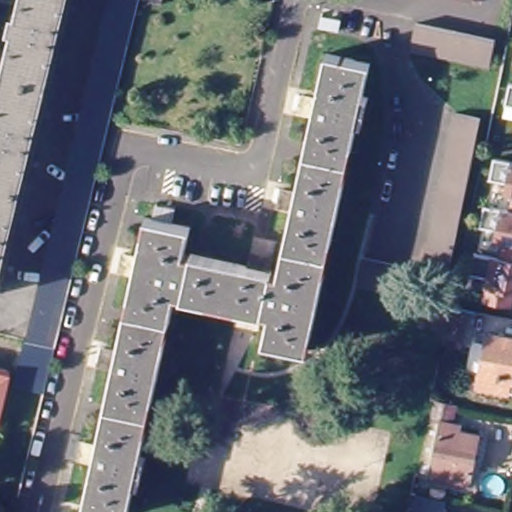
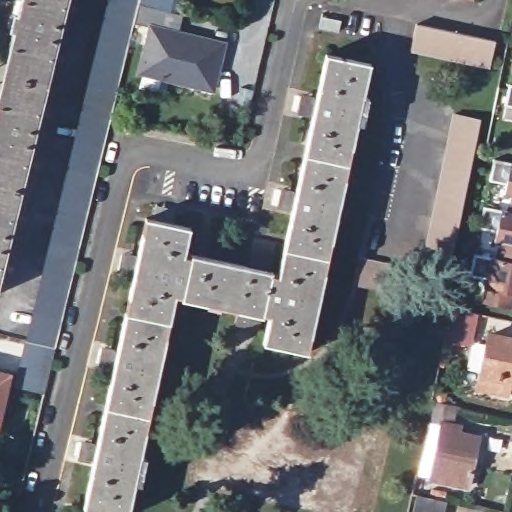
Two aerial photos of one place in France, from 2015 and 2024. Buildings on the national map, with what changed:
unchanged [(1,297),(0,296),(0,118),(21,30),(14,28),(17,15),(24,17),(28,0),(71,0),(1,297)]
unchanged [(112,0),(144,0),(117,113),(60,347),(31,340),(29,340),(112,0)]
unchanged [(478,10),(431,0),(481,0),(478,10)]
new [(149,26),(163,29),(167,11),(186,15),(182,33),(226,43),(216,92),(137,75),(149,26)]
unchanged [(496,40),(490,67),(410,51),(416,23),(496,40)]
unchanged [(510,45),(512,45),(512,67),(506,66),(510,45)]
unchanged [(311,351),(266,341),(271,318),(262,317),(262,320),(183,302),(184,299),(176,297),(129,512),(100,512),(82,508),(92,465),(85,463),(89,449),(95,451),(113,371),(106,368),(110,353),(116,355),(134,274),(126,272),(129,257),(136,260),(146,221),(191,231),(185,258),(192,260),(194,257),(272,274),(271,278),(278,279),(295,211),(286,209),(290,194),(297,196),(315,116),(307,114),(311,100),(317,101),(329,52),(375,62),(311,351)]
unchanged [(505,67),(506,66),(512,67),(512,68),(505,67)]
unchanged [(495,114),(500,92),(512,95),(512,117),(495,114)]
unchanged [(456,109),(482,115),(451,272),(422,266),(456,109)]
unchanged [(507,141),(510,127),(512,117),(512,142),(507,141)]
unchanged [(504,192),(506,182),(490,179),(494,157),(512,161),(512,194),(504,192)]
unchanged [(474,252),(498,258),(502,242),(494,240),(497,230),(480,227),(484,205),(508,211),(512,194),(512,265),(488,260),(473,257),(474,252)]
unchanged [(417,265),(410,292),(360,281),(365,253),(417,265)]
unchanged [(482,301),(485,287),(487,277),(470,274),(473,257),(488,260),(512,265),(512,305),(512,307),(482,301)]
unchanged [(475,340),(452,335),(457,309),(480,314),(475,340)]
unchanged [(490,336),(512,341),(512,382),(508,395),(479,388),(490,336)]
unchanged [(60,347),(49,391),(20,383),(31,340),(60,347)]
unchanged [(0,402),(0,372),(7,373),(0,402)]
unchanged [(430,423),(434,403),(457,407),(453,428),(458,430),(457,435),(477,438),(467,487),(431,480),(420,478),(430,423)]
unchanged [(414,512),(417,497),(447,503),(445,512),(414,512)]

